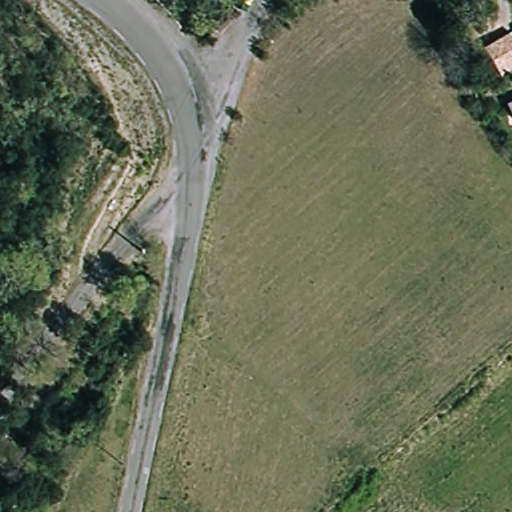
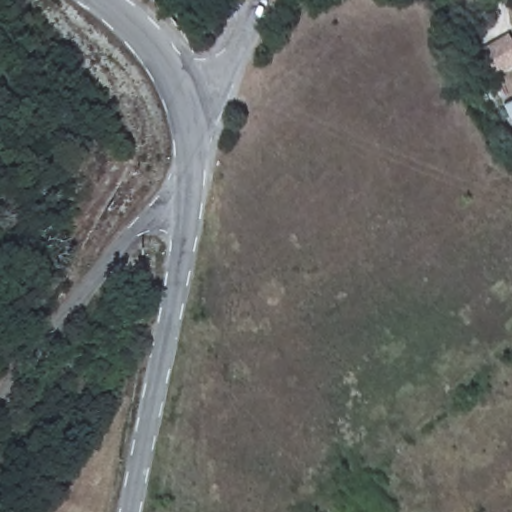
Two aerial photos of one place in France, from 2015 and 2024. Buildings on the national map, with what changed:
unchanged [(485,48),(512,35),(512,70),(500,77),(485,48)]

